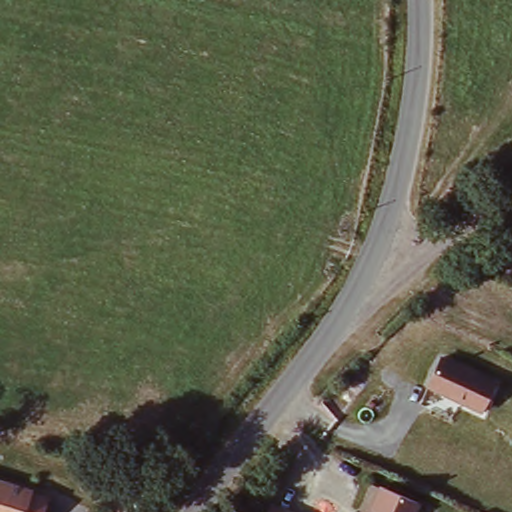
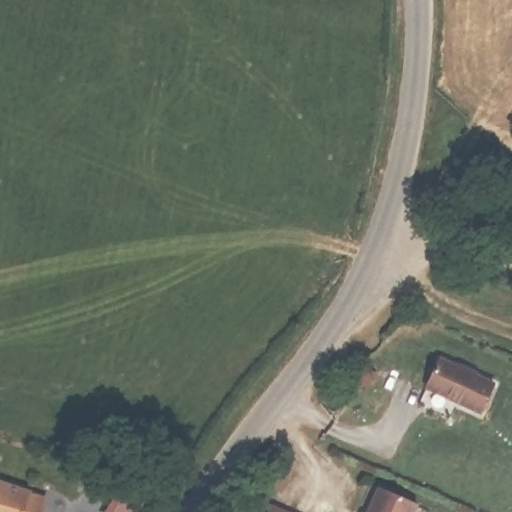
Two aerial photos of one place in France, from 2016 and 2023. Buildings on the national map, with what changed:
unchanged [(496,381),(483,412),(428,389),(445,357),(496,381)]
unchanged [(0,512),(0,477),(31,487),(47,493),(41,512),(0,512)]
unchanged [(420,512),(368,512),(380,486),(424,503),(420,512)]
unchanged [(291,512),(269,512),(273,504),(291,512)]

